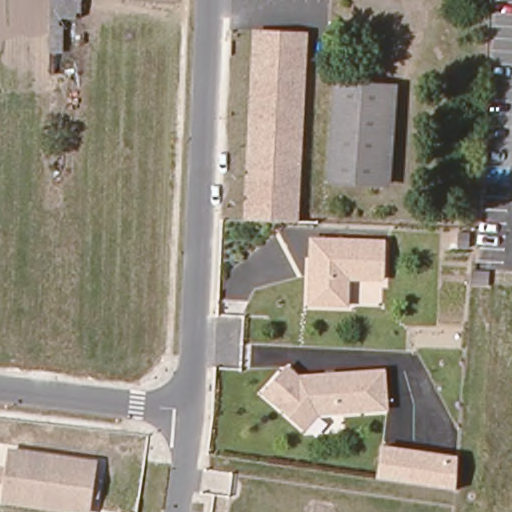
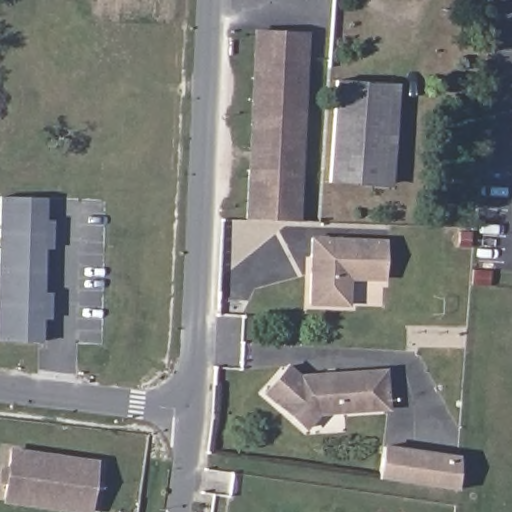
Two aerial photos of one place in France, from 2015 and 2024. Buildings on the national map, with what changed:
demolished [(51,0),(80,0),(80,19),(64,19),(63,52),(48,51),(51,0)]
unchanged [(301,222),(241,220),(251,27),(309,30),(301,222)]
unchanged [(345,80),(397,86),(390,184),(341,179),(345,80)]
new [(38,319),(37,343),(0,342),(0,196),(41,197),(41,221),(50,222),(49,248),(40,247),(39,294),(47,294),(46,320),(38,319)]
unchanged [(385,282),(348,280),(349,308),(307,307),(309,235),(385,237),(385,282)]
unchanged [(281,408),(256,381),(277,361),(281,357),(285,361),(292,369),(378,376),(376,413),(307,408),(293,421),(281,408)]
unchanged [(452,487),(439,486),(377,481),(377,480),(380,448),(441,453),(455,454),(452,487)]
unchanged [(10,449),(93,462),(86,512),(2,498),(10,449)]

